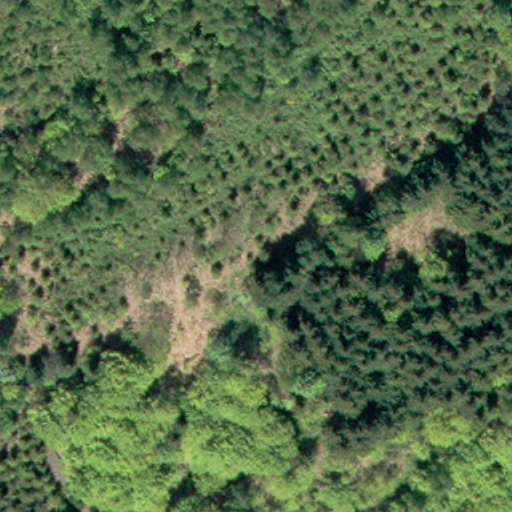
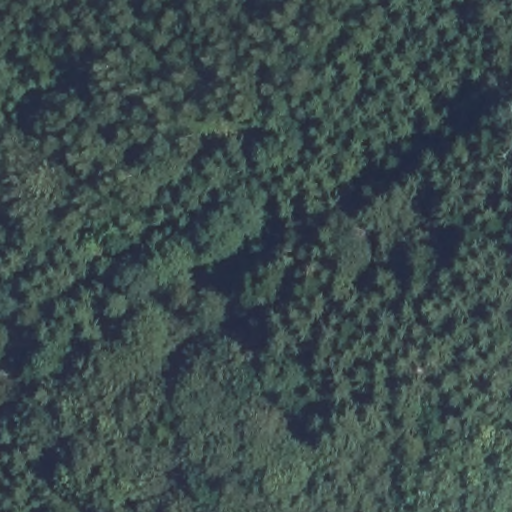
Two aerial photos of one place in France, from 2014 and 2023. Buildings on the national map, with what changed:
[]

